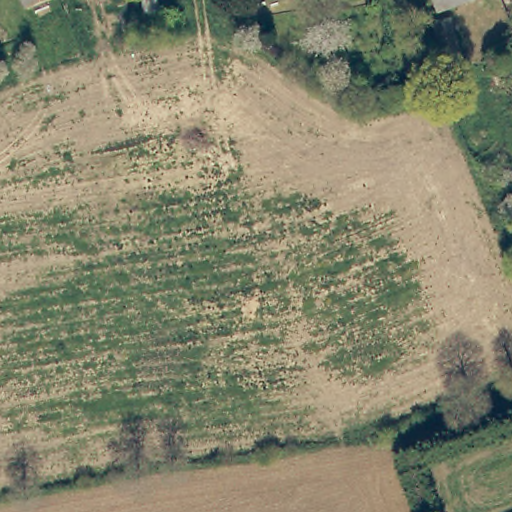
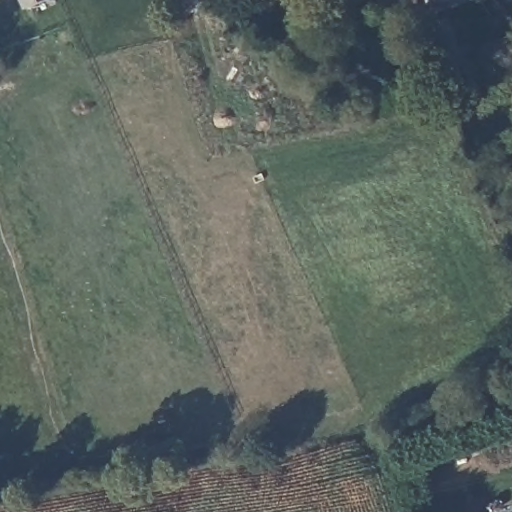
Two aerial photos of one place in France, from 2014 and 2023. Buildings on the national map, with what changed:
unchanged [(20,0),(39,0),(24,7),(20,0)]
unchanged [(435,0),(448,0),(436,4),(435,0)]
unchanged [(430,16),(450,10),(463,57),(442,65),(438,49),(430,16)]

